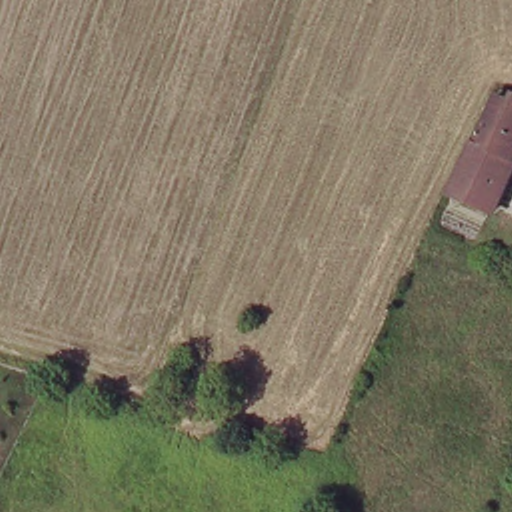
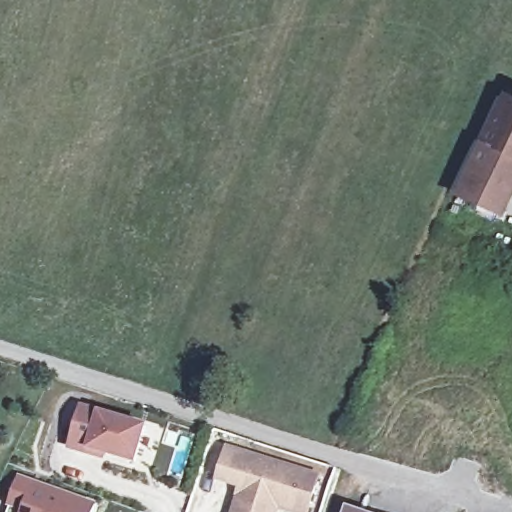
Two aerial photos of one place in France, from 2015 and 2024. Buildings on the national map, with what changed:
unchanged [(499,95),(512,102),(512,174),(496,210),(450,190),(499,95)]
new [(83,408),(147,428),(136,462),(92,449),(91,454),(71,448),(83,408)]
new [(320,479),(310,512),(293,512),(279,507),(278,512),(236,512),(244,486),(220,478),(229,450),(320,479)]
new [(21,478),(96,506),(94,512),(9,512),(11,506),(21,478)]
new [(373,512),(340,512),(344,502),(373,512)]

